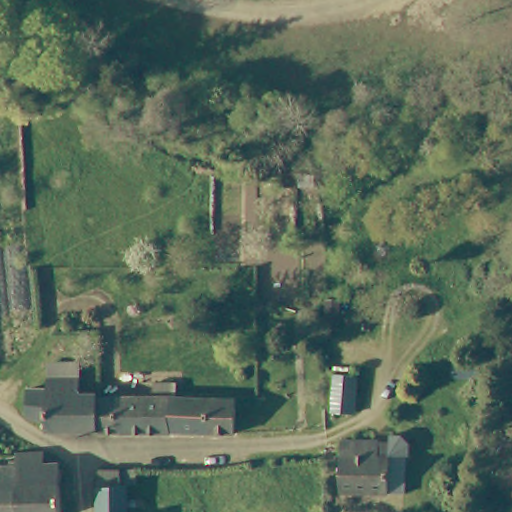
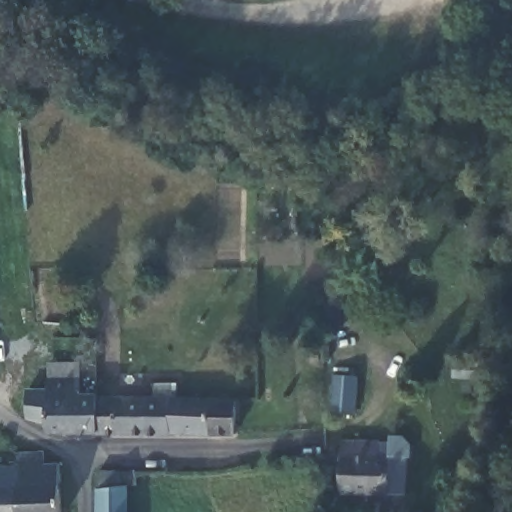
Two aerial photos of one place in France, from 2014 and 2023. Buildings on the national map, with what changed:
unchanged [(336,351),(322,351),(320,324),(335,323),(336,351)]
unchanged [(170,421),(170,424),(116,423),(96,422),(47,421),(46,412),(30,411),(27,383),(46,382),(46,371),(77,371),(77,383),(95,383),(96,389),(116,389),(149,389),(170,391),(170,421)]
unchanged [(170,421),(170,391),(210,392),(211,392),(236,391),(237,422),(211,422),(170,421)]
unchanged [(326,395),(350,399),(344,438),(321,434),(326,395)]
unchanged [(375,437),(375,429),(395,428),(395,448),(392,448),(393,486),(389,486),(328,486),(328,439),(375,437)]
unchanged [(42,455),(54,454),(55,512),(15,512),(13,457),(42,455)]
unchanged [(13,457),(15,512),(0,512),(0,458),(13,457)]
unchanged [(125,469),(126,477),(127,512),(97,512),(96,476),(108,475),(116,469),(125,469)]

